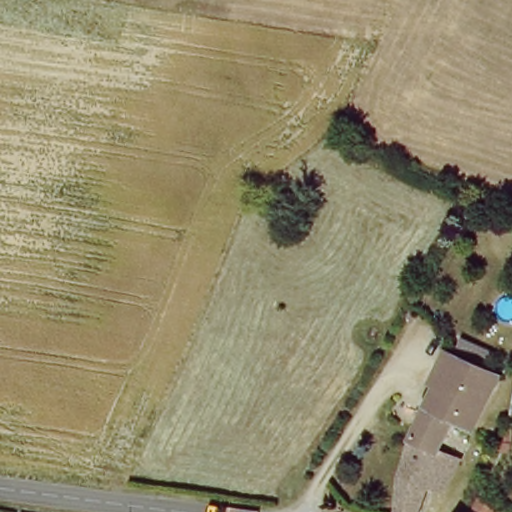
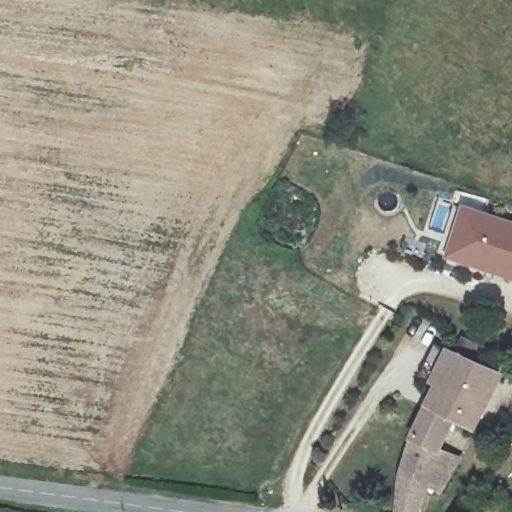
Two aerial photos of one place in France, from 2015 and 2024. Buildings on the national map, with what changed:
new [(512,221),(512,280),(447,258),(465,205),(512,221)]
unchanged [(422,403),(447,347),(497,368),(470,427),(460,422),(449,416),(422,403)]
unchanged [(449,416),(434,447),(450,453),(433,486),(423,481),(407,512),(388,512),(395,459),(422,403),(449,416)]

